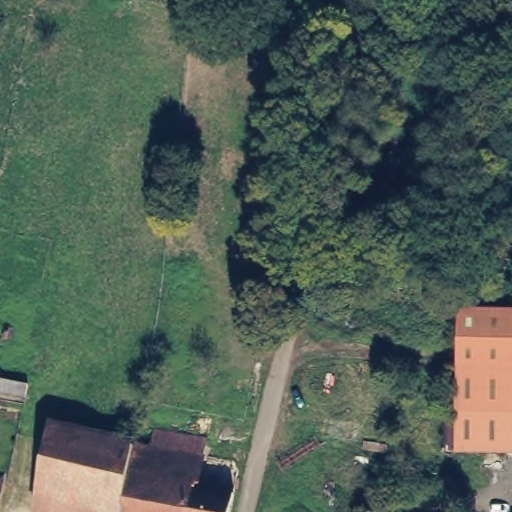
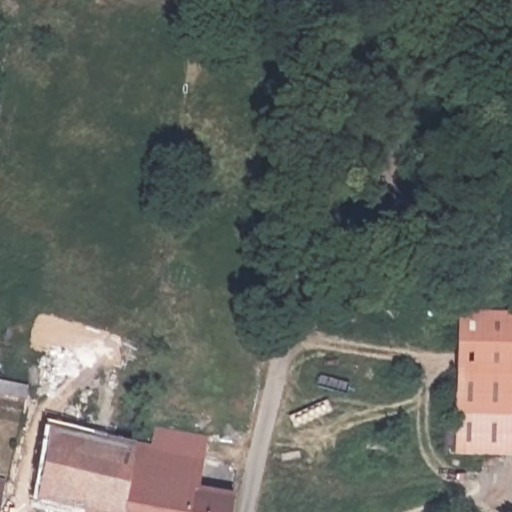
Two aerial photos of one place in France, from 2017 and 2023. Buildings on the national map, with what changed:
unchanged [(512,309),(512,449),(454,447),(459,308),(512,309)]
unchanged [(25,399),(0,394),(0,381),(28,385),(25,399)]
unchanged [(38,502),(49,428),(133,448),(123,512),(91,512),(38,502)]
unchanged [(230,512),(123,512),(133,448),(133,445),(151,449),(154,430),(206,438),(196,490),(233,496),(230,512)]
unchanged [(0,483),(0,477),(1,477),(0,483)]

